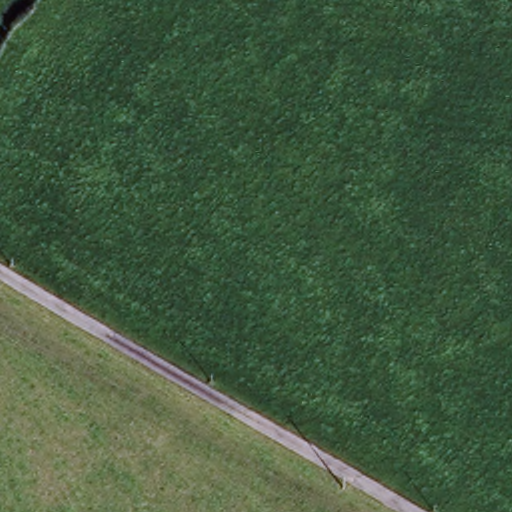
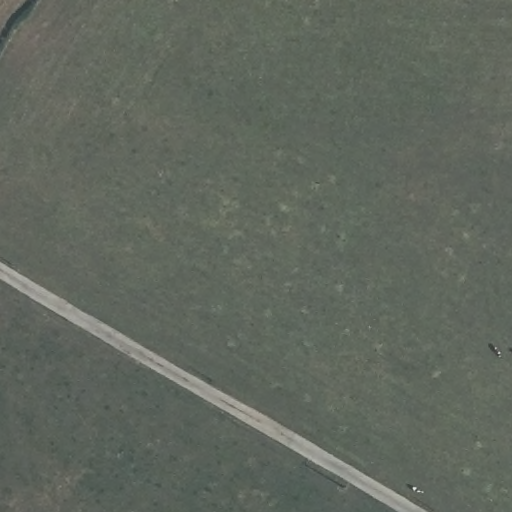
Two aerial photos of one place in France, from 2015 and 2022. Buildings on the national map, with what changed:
[]

